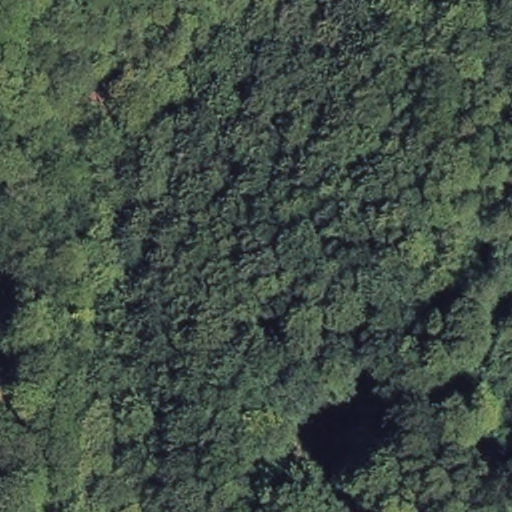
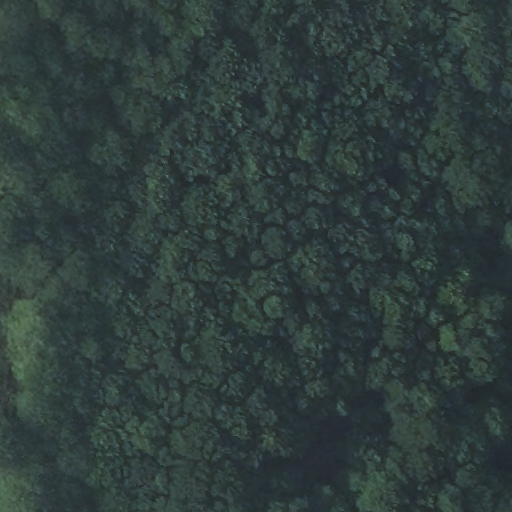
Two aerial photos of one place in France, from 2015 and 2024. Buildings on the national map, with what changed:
[]

